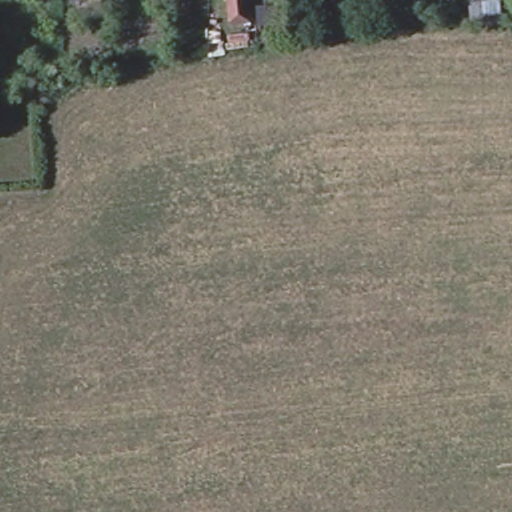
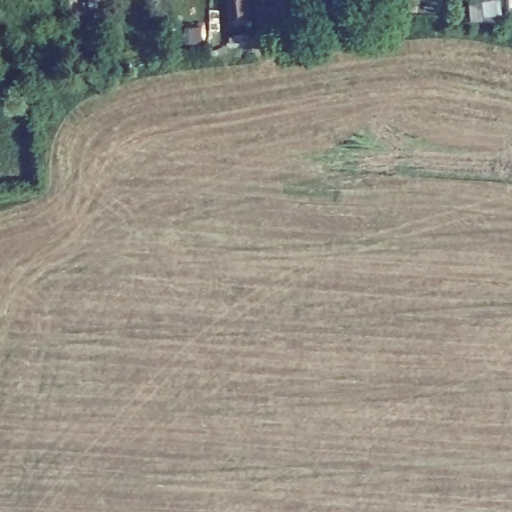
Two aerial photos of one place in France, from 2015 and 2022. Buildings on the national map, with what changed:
unchanged [(232,18),(230,0),(249,0),(251,15),(232,18)]
unchanged [(280,4),(280,22),(262,23),(260,5),(280,4)]

